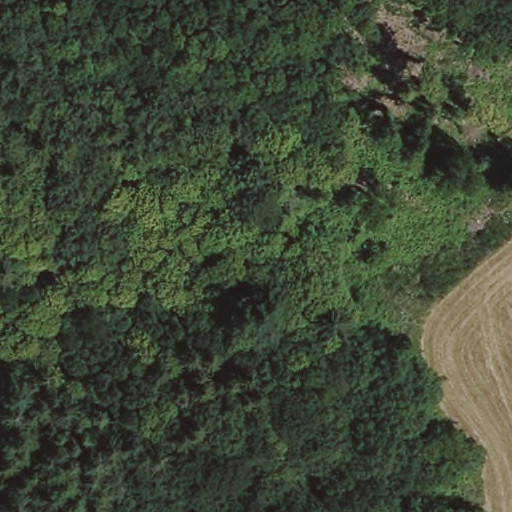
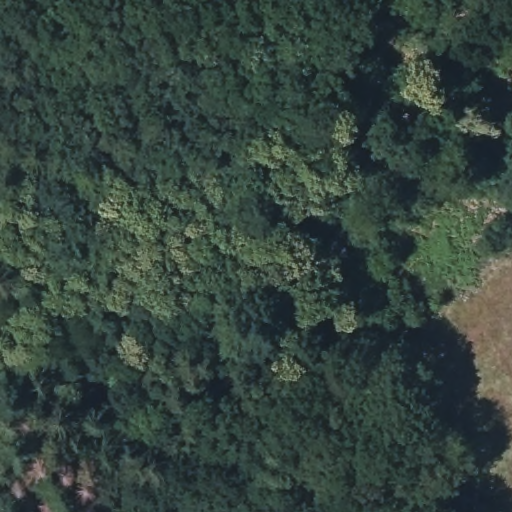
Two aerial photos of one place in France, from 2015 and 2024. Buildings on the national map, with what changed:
unchanged [(0,130),(0,115),(15,113),(19,128),(0,130)]

